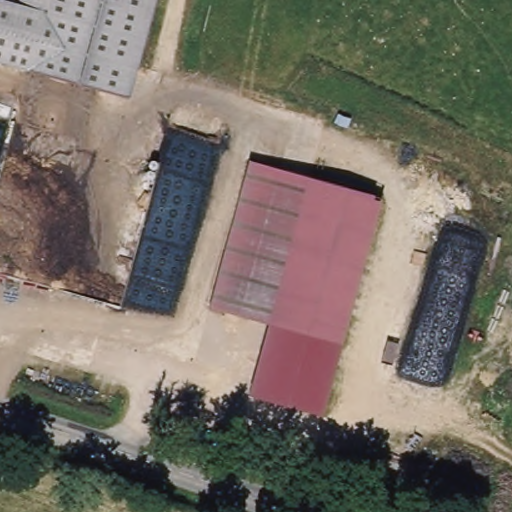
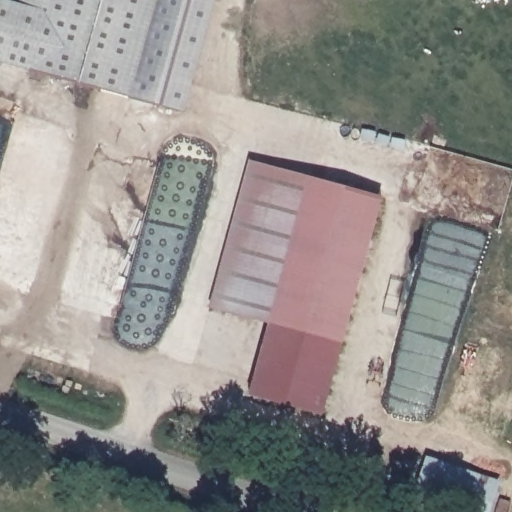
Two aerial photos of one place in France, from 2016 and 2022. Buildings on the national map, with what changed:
unchanged [(7,60),(0,57),(0,0),(26,0),(7,60)]
unchanged [(26,0),(137,0),(109,92),(67,78),(7,60),(26,0)]
new [(184,112),(109,92),(137,0),(215,0),(184,112)]
unchanged [(247,159),(306,177),(261,322),(202,303),(247,159)]
unchanged [(306,177),(377,200),(332,344),(261,322),(306,177)]
unchanged [(332,344),(312,412),(249,395),(268,324),(332,344)]

